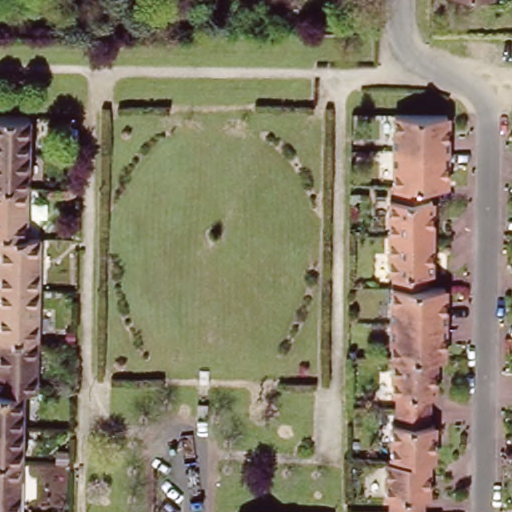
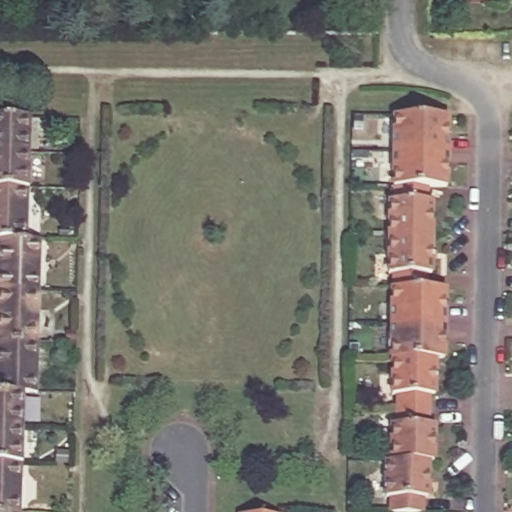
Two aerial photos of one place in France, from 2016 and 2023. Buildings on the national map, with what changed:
unchanged [(392,148),(392,113),(446,114),(445,149),(392,148)]
unchanged [(26,116),(25,154),(0,153),(0,115),(26,116)]
unchanged [(445,187),(428,187),(396,186),(391,186),(392,148),(445,149),(445,187)]
unchanged [(25,154),(25,191),(0,190),(0,153),(25,154)]
unchanged [(428,199),(432,199),(431,236),(388,235),(389,199),(396,199),(396,186),(428,187),(428,199)]
unchanged [(0,237),(0,190),(25,191),(23,238),(0,237)]
unchanged [(431,236),(430,273),(427,273),(426,287),(395,287),(395,273),(387,273),(388,235),(431,236)]
unchanged [(0,290),(0,237),(23,238),(38,238),(37,291),(0,290)]
unchanged [(444,288),(443,323),(390,322),(391,287),(395,287),(426,287),(444,288)]
unchanged [(0,341),(0,290),(37,291),(35,342),(0,341)]
unchanged [(442,359),(434,359),(391,358),(390,358),(390,322),(443,323),(442,359)]
unchanged [(0,391),(0,341),(35,342),(34,392),(21,392),(0,391)]
unchanged [(433,395),(429,395),(429,410),(396,409),(397,396),(391,395),(391,358),(434,359),(433,395)]
unchanged [(20,429),(0,429),(0,391),(21,392),(20,429)]
unchanged [(429,410),(428,425),(432,425),(432,463),(428,463),(390,462),(390,422),(396,422),(396,409),(429,410)]
unchanged [(20,465),(0,464),(0,429),(20,429),(20,465)]
unchanged [(427,498),(421,498),(421,512),(389,512),(389,497),(383,497),(384,462),(390,462),(428,463),(427,498)]
unchanged [(20,465),(18,512),(0,512),(0,464),(20,465)]
unchanged [(247,509),(290,509),(290,512),(247,512),(247,509)]

